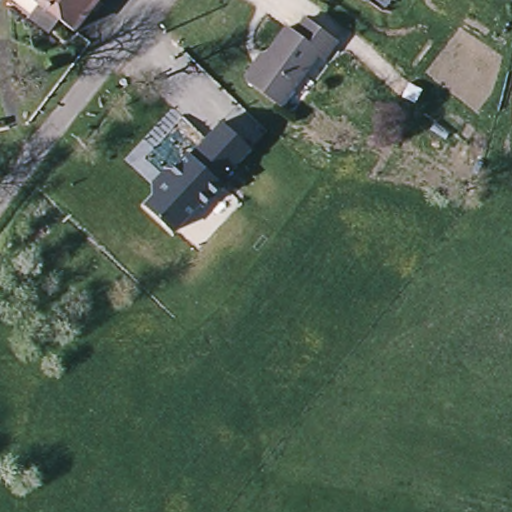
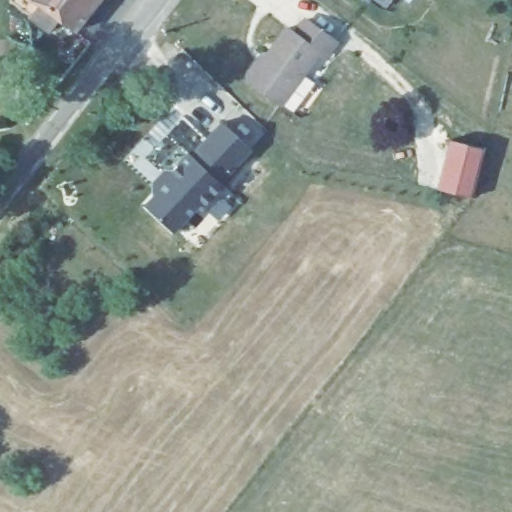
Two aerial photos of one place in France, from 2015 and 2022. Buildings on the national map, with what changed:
unchanged [(35,0),(100,0),(76,31),(35,0)]
unchanged [(288,29),(296,34),(306,20),(337,43),(326,58),(320,54),(298,83),(267,59),(288,29)]
unchanged [(282,105),(249,81),(249,76),(257,64),(263,64),(267,59),(298,83),(282,105)]
unchanged [(165,170),(169,174),(189,154),(192,156),(224,123),(252,149),(221,184),(224,187),(204,207),(200,204),(174,233),(145,206),(160,190),(152,183),(165,170)]
new [(482,148),(471,197),(437,189),(450,139),(482,148)]

